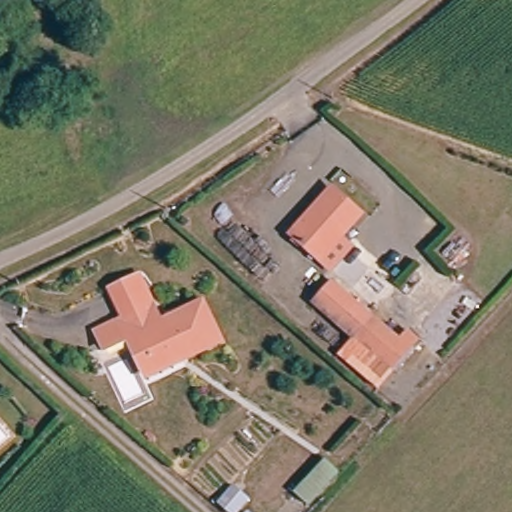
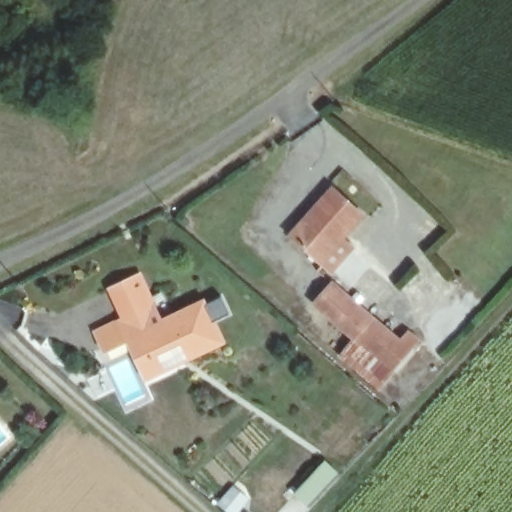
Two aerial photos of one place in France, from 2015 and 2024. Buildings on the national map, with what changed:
unchanged [(330,275),(321,265),(292,237),(334,189),(361,214),(342,237),(355,249),(330,275)]
unchanged [(129,336),(109,346),(101,328),(123,318),(113,292),(129,285),(141,280),(162,322),(205,301),(223,340),(159,369),(150,375),(129,336)]
unchanged [(323,299),(341,282),(378,315),(360,335),(323,299)]
unchanged [(412,348),(397,367),(360,335),(378,315),(412,348)]

